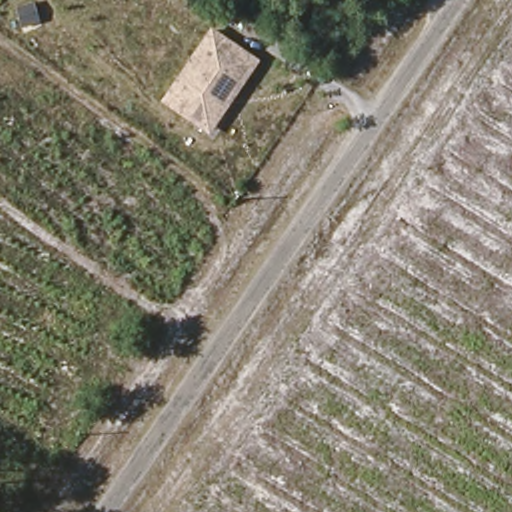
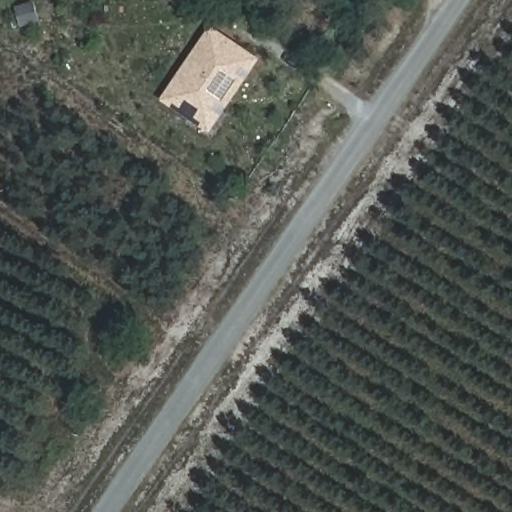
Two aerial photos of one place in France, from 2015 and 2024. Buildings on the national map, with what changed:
unchanged [(260,68),(219,128),(200,116),(193,124),(169,108),(215,39),(260,68)]

